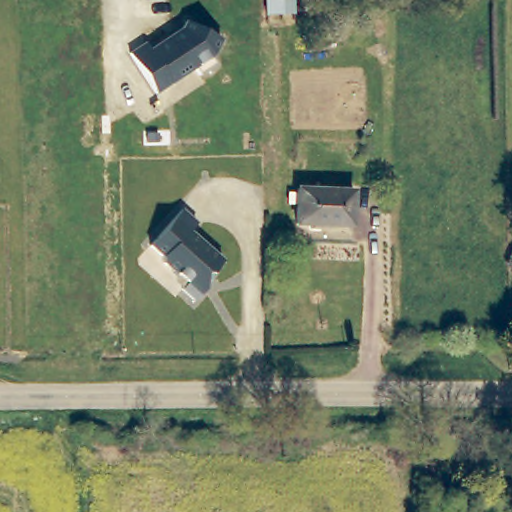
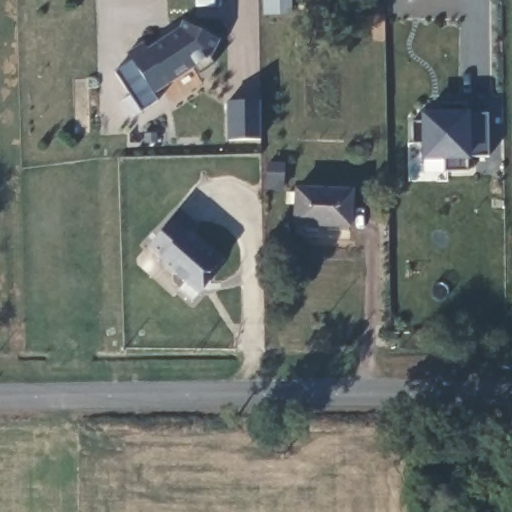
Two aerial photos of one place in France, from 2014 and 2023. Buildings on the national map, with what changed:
unchanged [(213,50),(211,51),(216,59),(200,70),(196,64),(195,63),(155,88),(164,100),(134,119),(104,78),(135,58),(130,49),(145,38),(150,44),(182,24),(185,17),(195,21),(221,34),(213,50)]
new [(227,101),(261,101),(262,139),(228,140),(227,101)]
new [(490,157),(471,156),(471,160),(465,159),(468,170),(445,172),(443,160),(423,160),(422,143),(413,144),(412,121),(421,120),(421,111),(437,111),(440,103),(467,103),(466,110),(470,110),(470,115),(488,114),(490,157)]
unchanged [(350,225),(296,220),(298,187),(353,192),(350,225)]
unchanged [(212,268),(212,276),(205,276),(205,284),(199,291),(195,295),(182,284),(187,278),(164,257),(164,252),(150,240),(182,204),(197,218),(190,226),(199,234),(223,255),(212,268)]

